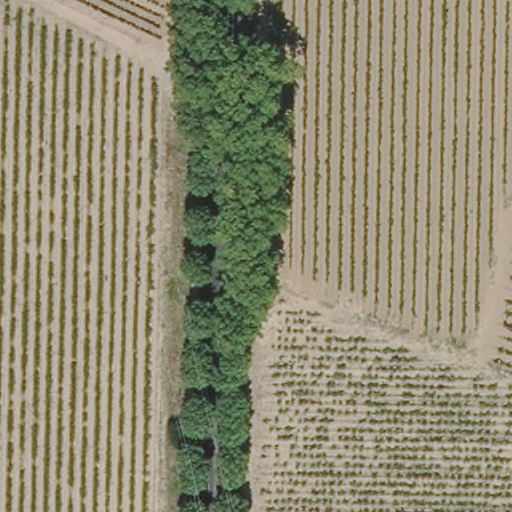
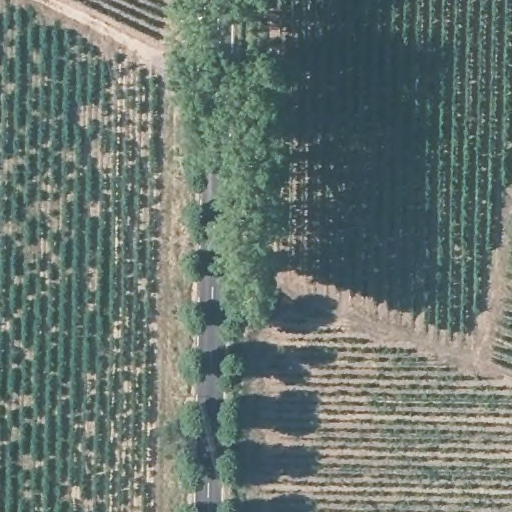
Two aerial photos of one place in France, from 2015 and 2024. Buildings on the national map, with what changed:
unchanged [(278,329),(256,329),(257,303),(278,302),(278,329)]

